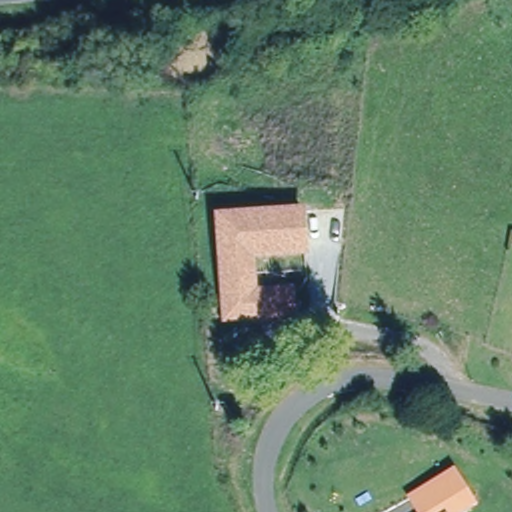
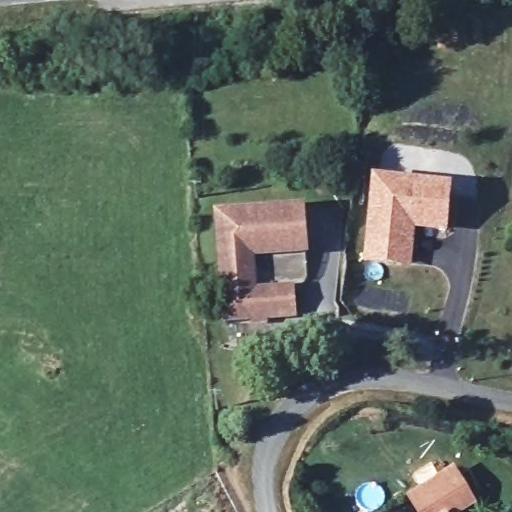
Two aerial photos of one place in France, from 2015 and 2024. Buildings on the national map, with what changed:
new [(454,185),(449,232),(418,230),(414,268),(363,263),(373,178),(454,185)]
unchanged [(306,253),(252,257),(254,295),(292,292),(294,317),(227,321),(220,217),(303,214),(306,253)]
unchanged [(406,497),(455,468),(477,505),(466,512),(415,512),(406,497)]

